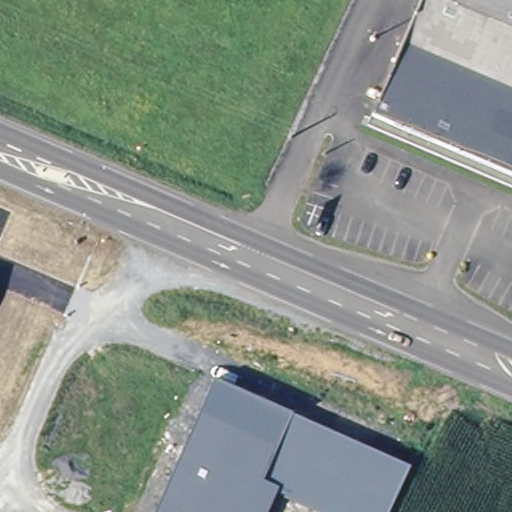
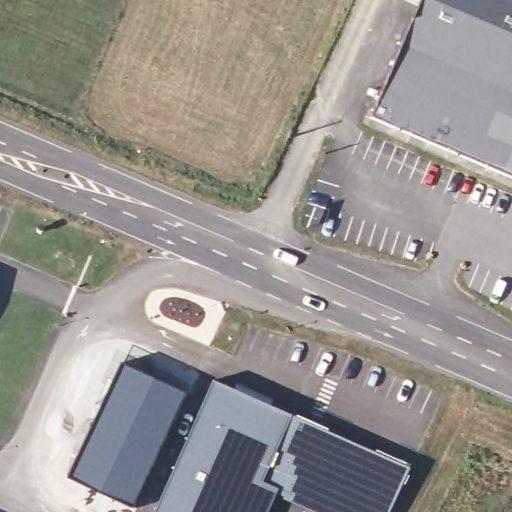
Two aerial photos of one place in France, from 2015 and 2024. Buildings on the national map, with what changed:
unchanged [(374,117),(425,0),(512,0),(512,173),(374,117)]
new [(124,364),(187,392),(134,506),(71,476),(124,364)]
unchanged [(392,512),(311,512),(277,496),(270,512),(158,512),(215,382),(411,469),(392,512)]

